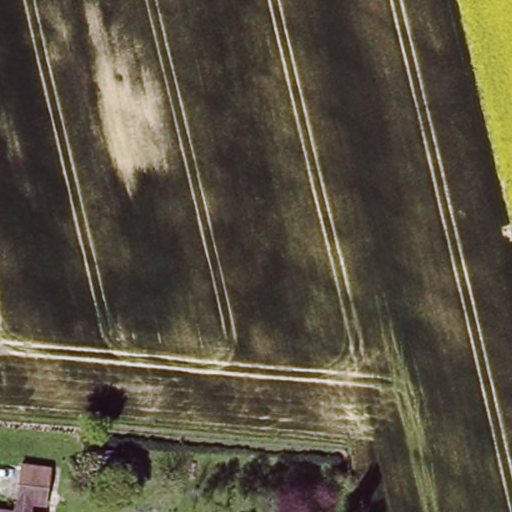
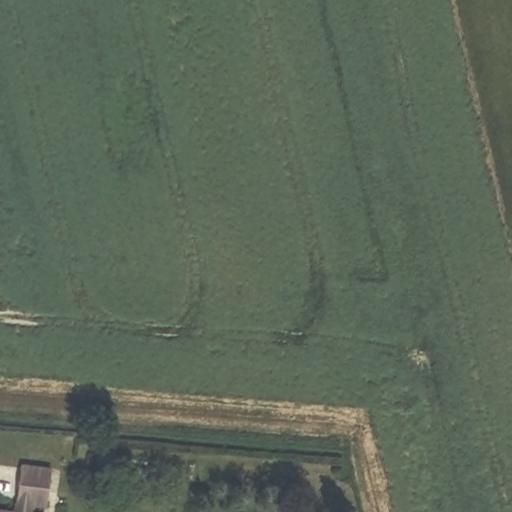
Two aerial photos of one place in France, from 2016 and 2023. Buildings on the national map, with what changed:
unchanged [(15,511),(20,467),(57,472),(52,512),(0,512),(0,509),(15,511)]

